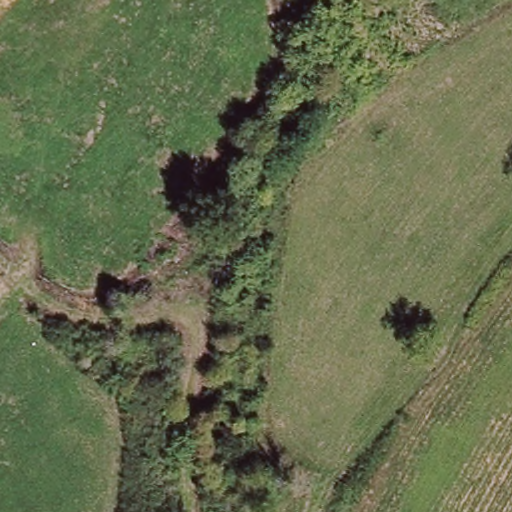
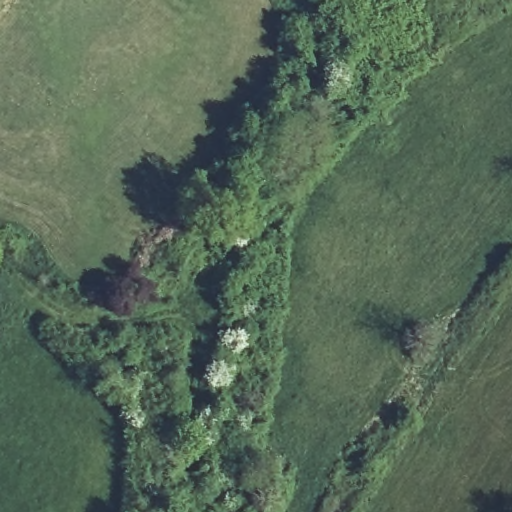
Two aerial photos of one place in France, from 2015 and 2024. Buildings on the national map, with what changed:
[]

